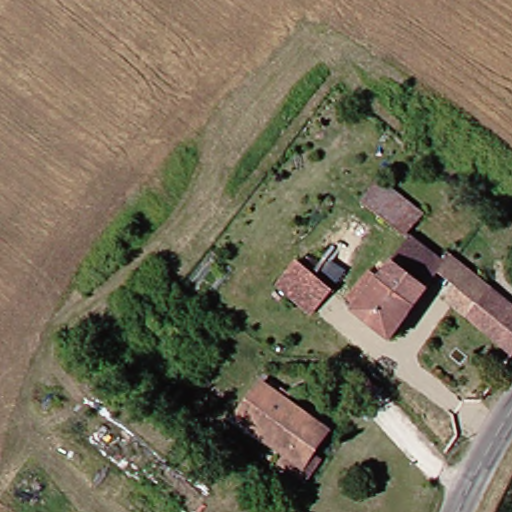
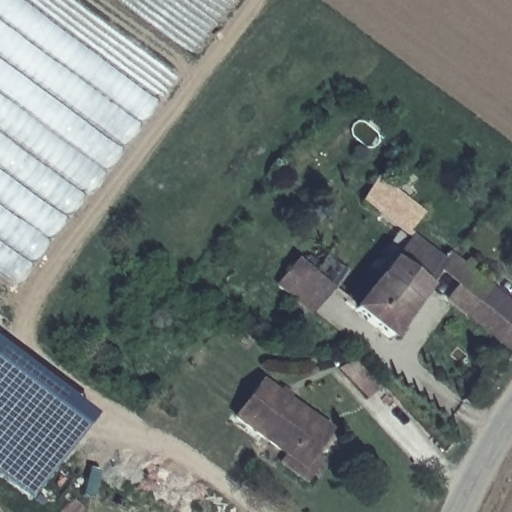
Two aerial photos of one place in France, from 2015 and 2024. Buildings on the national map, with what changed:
new [(20,0),(155,103),(14,286),(0,277),(0,0),(20,0)]
unchanged [(356,204),(374,184),(417,216),(402,236),(356,204)]
unchanged [(433,288),(396,335),(362,307),(402,255),(409,258),(424,237),(455,259),(433,288)]
unchanged [(474,322),(433,288),(455,259),(498,293),(474,322)]
unchanged [(342,290),(322,319),(287,290),(304,261),(342,290)]
unchanged [(498,293),(512,306),(512,352),(474,322),(498,293)]
new [(94,417),(32,498),(0,474),(0,344),(94,417)]
unchanged [(352,355),(381,385),(370,400),(336,368),(352,355)]
unchanged [(312,477),(287,457),(293,451),(242,415),(267,380),(334,427),(317,450),(327,458),(312,477)]
demolished [(352,394),(376,412),(366,425),(343,408),(352,394)]
demolished [(139,443),(209,499),(196,512),(189,512),(122,458),(139,443)]

